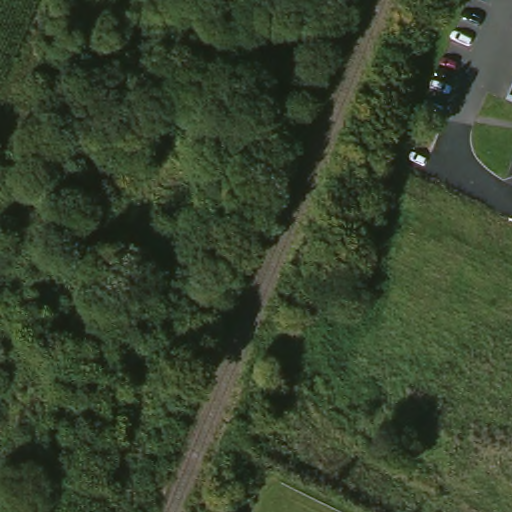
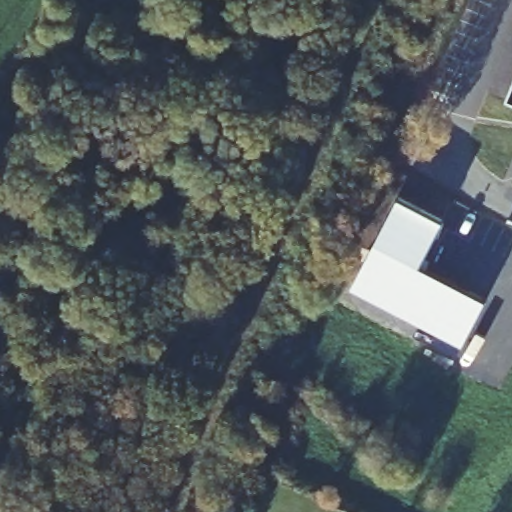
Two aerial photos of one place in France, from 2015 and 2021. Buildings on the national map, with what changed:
unchanged [(512,90),(512,99),(508,98),(512,90)]
new [(463,346),(350,287),(396,198),(441,220),(419,264),(485,300),(463,346)]

